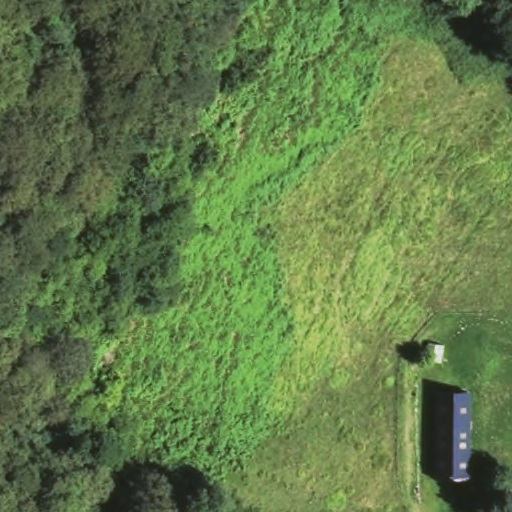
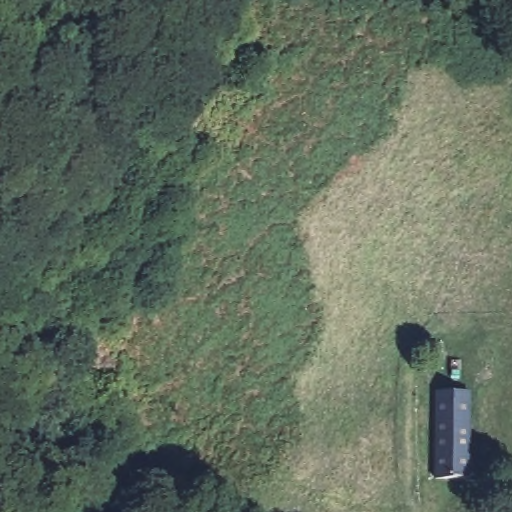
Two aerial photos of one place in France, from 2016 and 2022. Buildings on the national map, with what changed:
unchanged [(438,385),(481,382),(479,466),(438,466),(438,385)]

